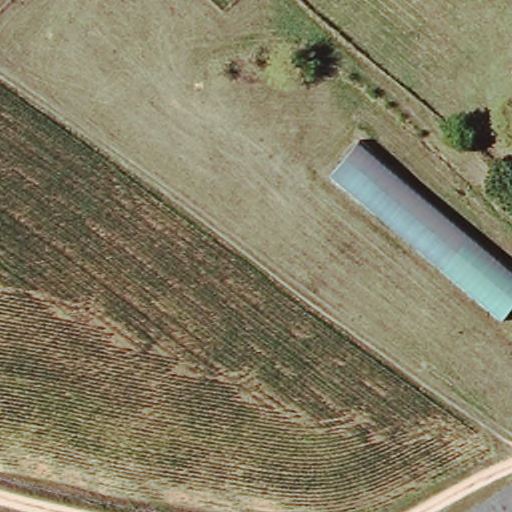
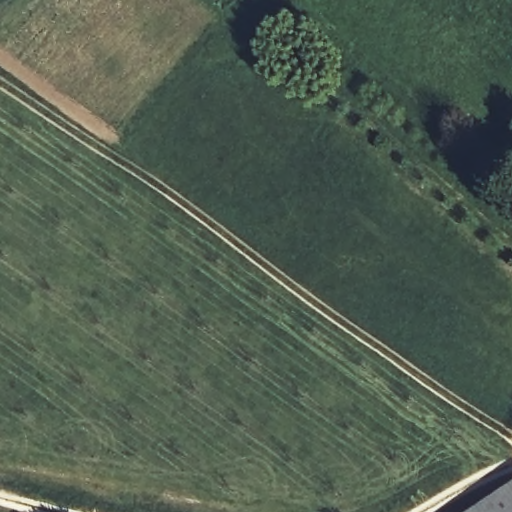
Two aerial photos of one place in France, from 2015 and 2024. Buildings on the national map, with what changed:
demolished [(512,268),(512,303),(497,320),(326,175),(355,139),(512,268)]
unchanged [(463,512),(512,479),(512,512),(463,512)]

